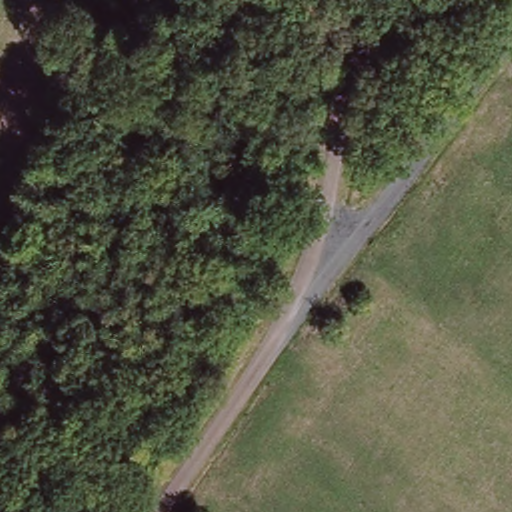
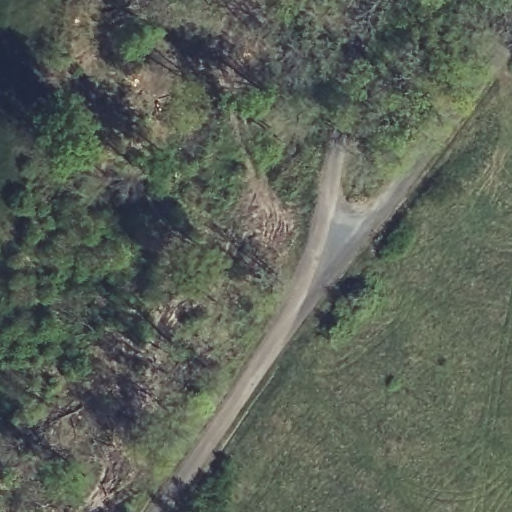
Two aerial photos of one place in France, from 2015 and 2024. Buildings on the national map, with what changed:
[]

